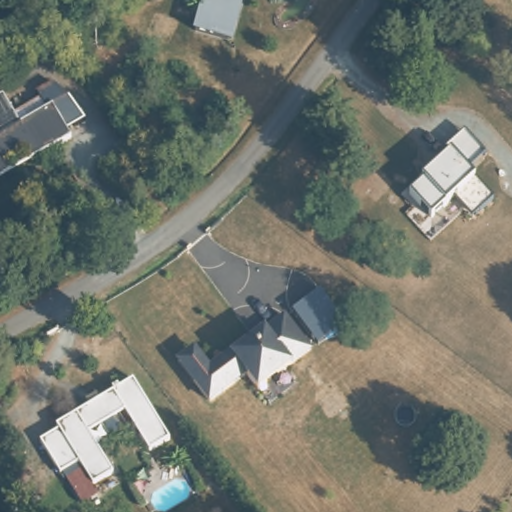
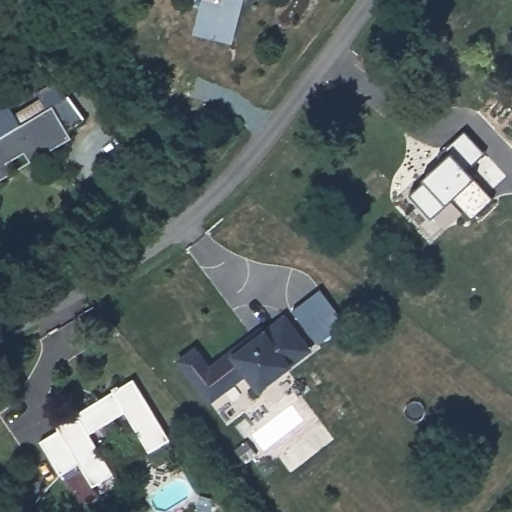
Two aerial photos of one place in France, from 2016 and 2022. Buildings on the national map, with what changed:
unchanged [(211,9),(213,0),(238,0),(235,15),(241,15),(235,40),(199,30),(205,7),(211,9)]
unchanged [(55,104),(0,135),(0,98),(3,96),(14,114),(41,98),(37,91),(51,82),(69,97),(84,119),(69,129),(55,104)]
unchanged [(55,104),(74,136),(32,159),(15,170),(0,178),(0,135),(55,104)]
unchanged [(452,197),(445,204),(432,216),(411,193),(423,180),(451,154),(446,148),(465,131),(483,152),(465,169),(473,177),(493,198),(472,219),(452,197)]
unchanged [(343,320),(318,341),(292,310),(321,290),(343,320)]
unchanged [(196,350),(212,368),(254,335),(256,338),(285,315),(310,347),(311,347),(300,356),(270,380),(260,388),(260,387),(248,372),(213,401),(197,380),(181,361),(196,350)]
unchanged [(110,473),(90,485),(86,478),(75,463),(57,475),(36,441),(54,431),(52,426),(127,379),(166,439),(145,450),(120,411),(84,432),(107,468),(110,473)]
unchanged [(16,500),(30,512),(6,512),(16,500)]

